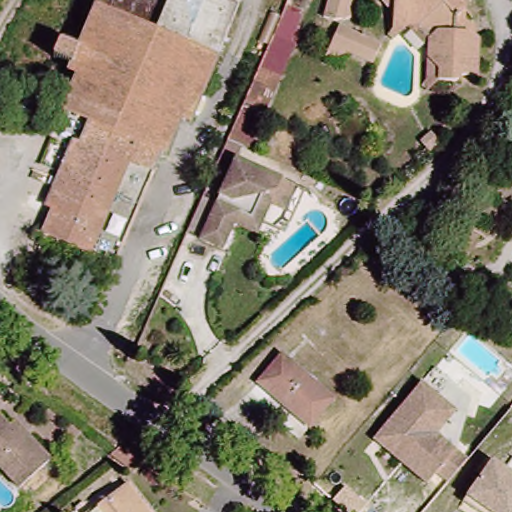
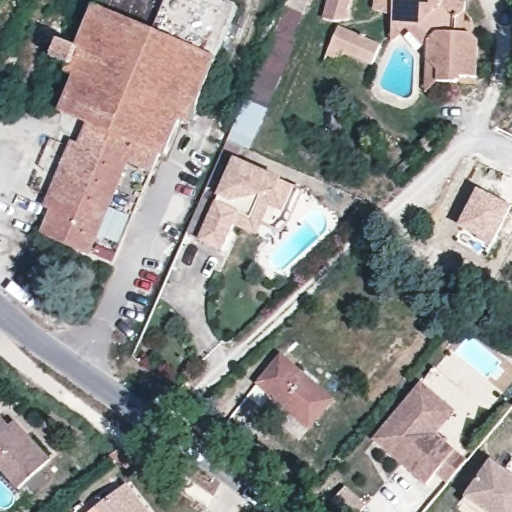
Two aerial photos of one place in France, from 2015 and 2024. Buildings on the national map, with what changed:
unchanged [(79,46),(100,0),(212,0),(237,11),(188,124),(178,121),(163,156),(158,153),(149,173),(78,143),(88,120),(63,109),(82,70),(52,54),(61,37),(79,46)]
unchanged [(309,17),(288,9),(291,0),(315,0),(309,17)]
unchanged [(346,26),(321,24),(326,0),(351,0),(346,26)]
unchanged [(425,87),(425,47),(408,38),(390,40),(390,0),(465,0),(467,1),(466,30),(476,31),(472,84),(425,87)]
unchanged [(370,67),(342,55),(323,60),(334,30),(383,47),(370,67)]
unchanged [(297,48),(268,123),(243,114),(275,37),(297,48)]
unchanged [(37,236),(42,226),(78,143),(149,173),(110,259),(105,270),(37,236)]
unchanged [(231,216),(221,235),(202,224),(235,156),(289,178),(277,203),(266,198),(254,226),(231,216)]
new [(512,207),(512,208),(491,247),(457,226),(479,188),(512,207)]
unchanged [(331,397),(313,424),(254,386),(273,358),(331,397)]
unchanged [(383,431),(422,386),(446,407),(455,415),(436,438),(465,464),(446,486),(435,477),(425,488),(381,449),(373,442),(383,431)]
unchanged [(14,492),(0,475),(0,425),(5,431),(15,425),(31,444),(48,464),(14,492)]
unchanged [(122,453),(136,468),(124,480),(109,463),(113,459),(122,453)]
unchanged [(487,462),(499,471),(512,479),(512,512),(469,512),(458,505),(462,499),(487,462)]
unchanged [(121,487),(141,512),(94,512),(93,510),(121,487)]

